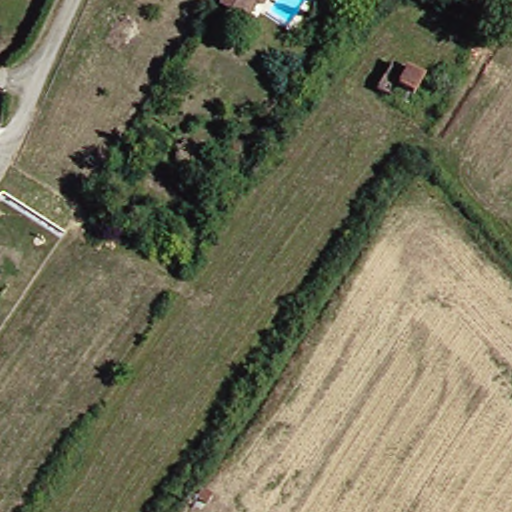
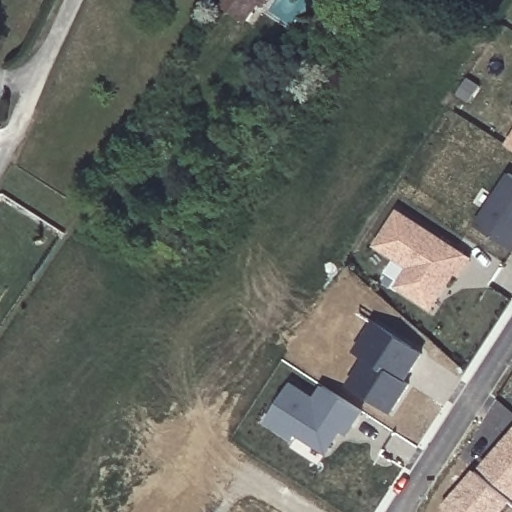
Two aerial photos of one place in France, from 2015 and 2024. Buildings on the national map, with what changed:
unchanged [(256,10),(250,5),(237,24),(216,10),(223,0),(263,0),(256,10)]
unchanged [(420,81),(413,95),(397,85),(389,97),(379,91),(392,70),(394,66),(420,81)]
new [(505,146),(512,136),(512,150),(505,146)]
new [(485,210),(510,173),(512,174),(512,249),(475,225),(485,210)]
new [(415,302),(394,288),(406,268),(373,246),(395,213),(467,259),(456,276),(452,273),(428,310),(415,302)]
new [(347,386),(365,358),(354,351),(374,321),(425,352),(407,381),(412,384),(392,414),(347,386)]
new [(292,382),(315,396),(323,385),(364,412),(349,436),(342,432),(328,455),(296,435),(292,441),(266,423),(292,382)]
new [(512,431),(512,495),(480,467),(512,431)]
new [(474,470),(512,502),(512,503),(504,512),(443,512),(443,505),(474,470)]

